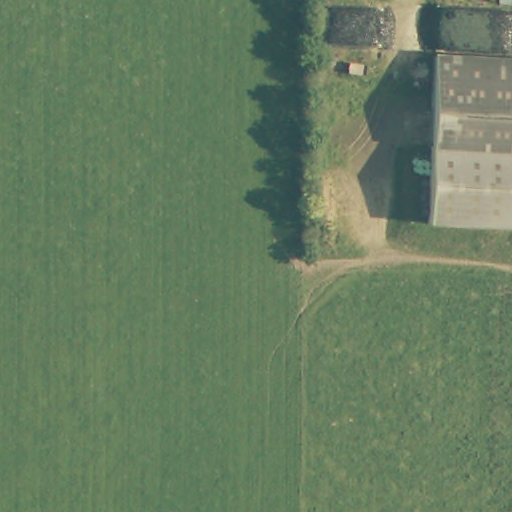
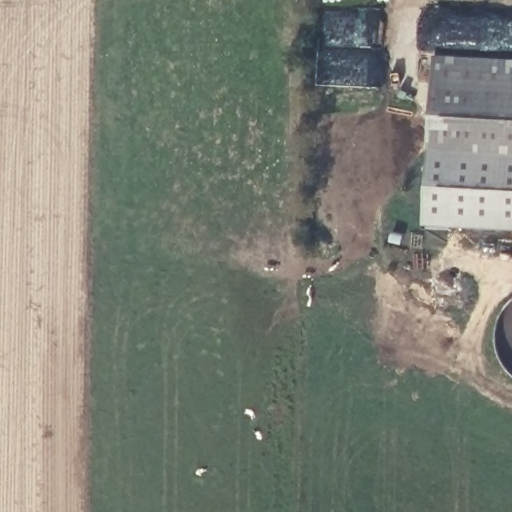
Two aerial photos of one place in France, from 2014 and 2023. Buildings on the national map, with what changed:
unchanged [(431,55),(512,62),(512,151),(424,143),(423,143),(431,55)]
unchanged [(512,151),(512,228),(418,220),(424,143),(512,151)]

